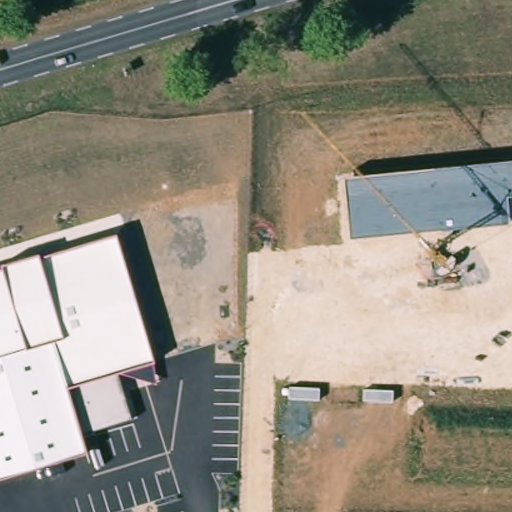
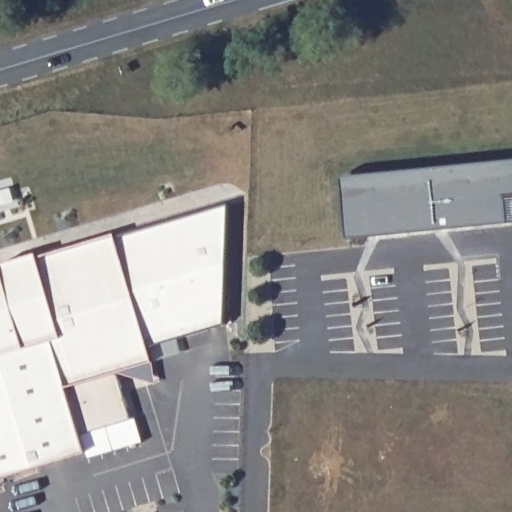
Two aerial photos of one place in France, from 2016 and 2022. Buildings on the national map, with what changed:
unchanged [(512,161),(512,197),(505,198),(508,222),(350,239),(343,177),(512,161)]
new [(117,238),(228,204),(225,323),(177,338),(181,352),(152,361),(117,238)]
unchanged [(157,382),(118,374),(131,417),(80,434),(86,451),(0,478),(0,266),(0,263),(38,252),(39,257),(116,233),(152,361),(157,382)]

